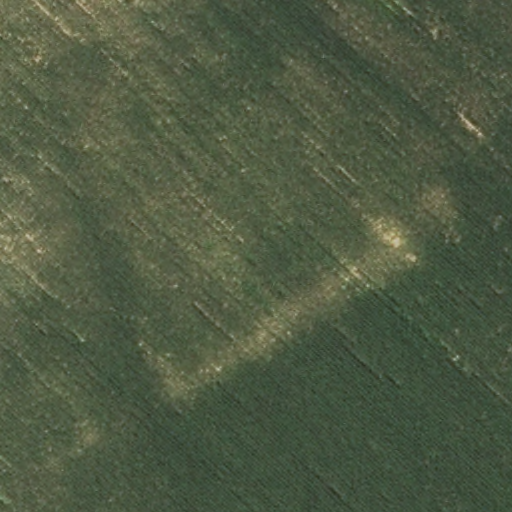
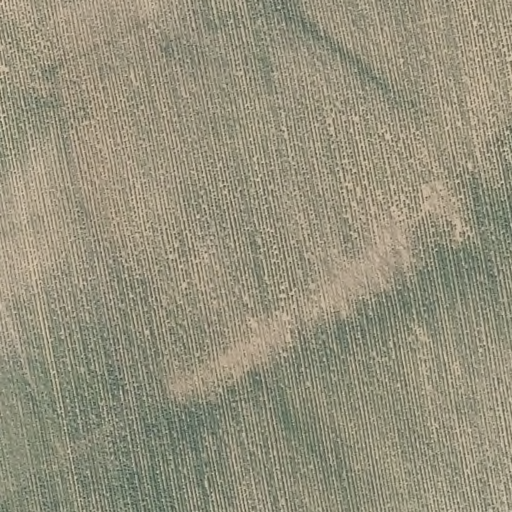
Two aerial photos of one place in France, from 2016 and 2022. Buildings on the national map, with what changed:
[]

